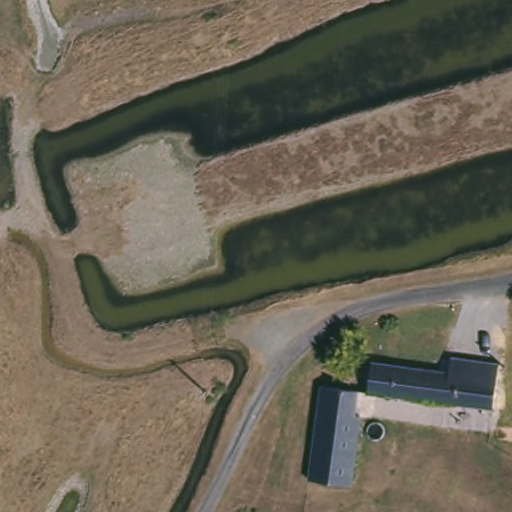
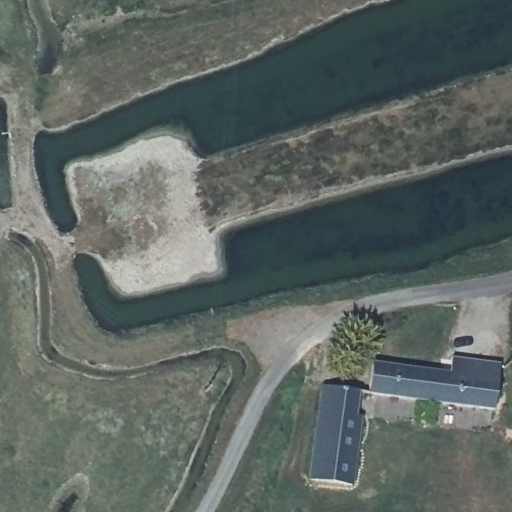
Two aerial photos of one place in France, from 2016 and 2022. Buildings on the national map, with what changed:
unchanged [(489,407),(362,395),(365,363),(443,370),(445,355),(493,360),(489,407)]
unchanged [(307,484),(316,389),(354,393),(351,418),(355,418),(349,488),(307,484)]

